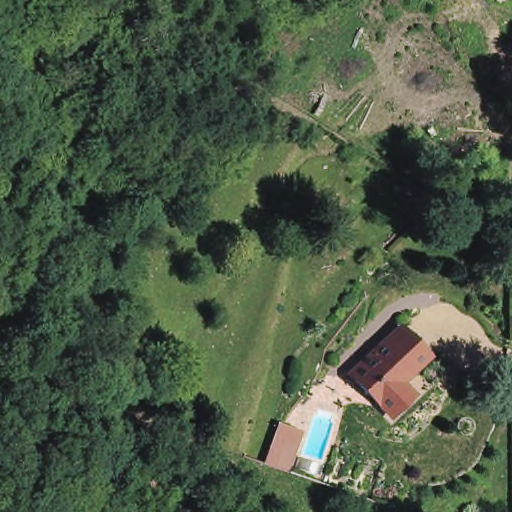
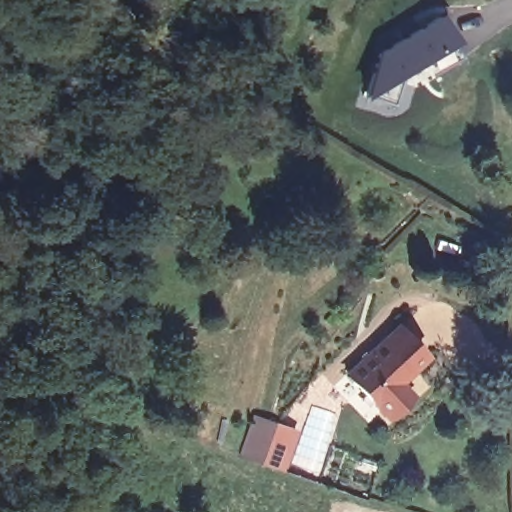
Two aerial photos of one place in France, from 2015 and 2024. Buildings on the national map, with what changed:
new [(440,15),(453,38),(404,67),(392,103),(365,94),(379,52),(440,15)]
new [(465,57),(433,76),(422,57),(453,38),(465,57)]
unchanged [(403,326),(429,355),(402,381),(414,394),(391,416),(351,373),(403,326)]
unchanged [(243,451),(254,421),(274,428),(276,424),(297,432),(284,466),(282,472),(261,465),(241,458),(243,451)]

